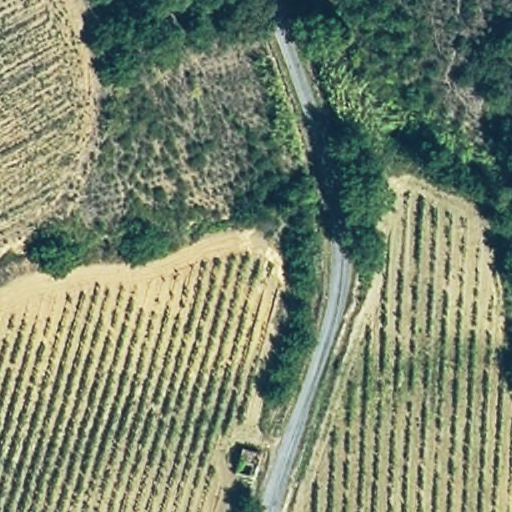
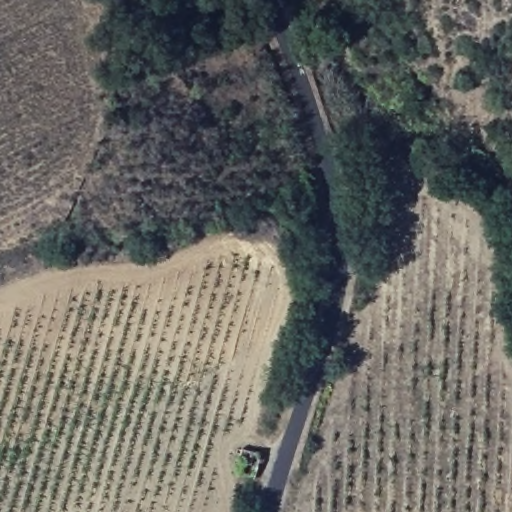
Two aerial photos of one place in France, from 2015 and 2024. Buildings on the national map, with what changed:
unchanged [(260,449),(255,475),(235,469),(243,445),(260,449)]

